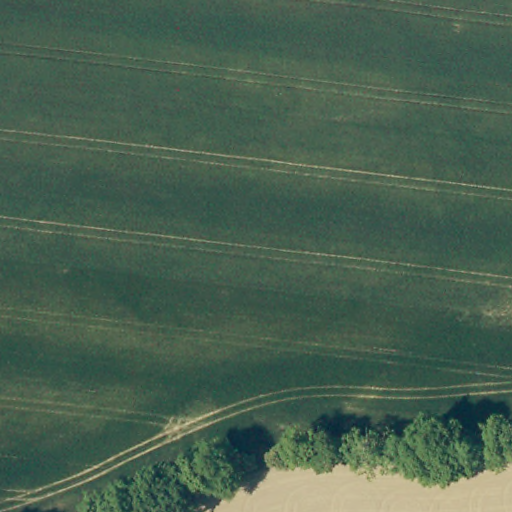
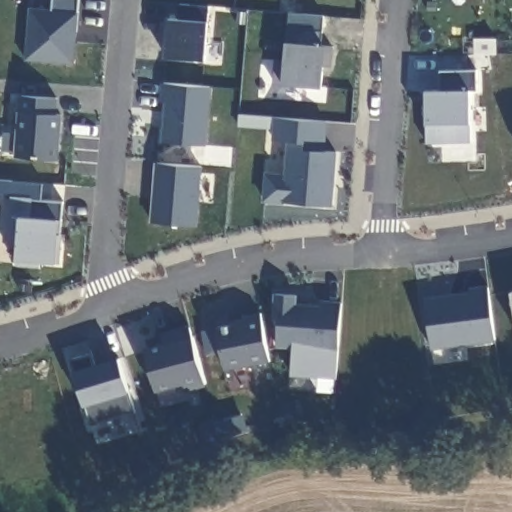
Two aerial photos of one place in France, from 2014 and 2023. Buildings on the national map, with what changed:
new [(74,63),(25,59),(31,6),(52,9),(53,0),(79,0),(74,63)]
new [(207,22),(205,59),(166,55),(169,17),(181,18),(180,3),(210,5),(207,22)]
new [(324,66),(322,86),(283,82),(273,81),(275,58),(285,59),(287,40),(300,41),(299,27),(325,29),(324,44),(334,44),(332,67),(324,66)]
new [(477,89),(472,90),(473,140),(427,141),(426,89),(442,88),(440,71),(477,70),(477,89)]
new [(207,144),(161,140),(165,80),(213,84),(207,144)]
new [(59,113),(62,113),(58,159),(16,155),(19,94),(60,97),(59,113)]
new [(328,150),(337,150),(333,206),(265,199),(268,171),(287,174),(287,141),(272,139),(273,128),(238,125),(238,113),(328,120),(328,150)]
new [(197,225),(151,221),(155,160),(201,164),(197,225)]
new [(42,199),(65,202),(62,232),(64,232),(60,262),(57,262),(41,261),(41,267),(14,266),(16,257),(17,250),(1,250),(3,222),(8,223),(11,196),(0,195),(0,179),(43,182),(42,199)]
new [(337,378),(290,374),(291,347),(275,345),(276,293),(298,294),(298,302),(321,303),(322,297),(341,299),(337,378)]
new [(227,369),(216,324),(234,320),(233,312),(261,306),(271,361),(227,369)]
new [(187,389),(186,383),(155,390),(144,345),(162,340),(160,332),(189,325),(205,384),(187,389)]
new [(91,424),(71,361),(115,347),(134,411),(91,424)]

